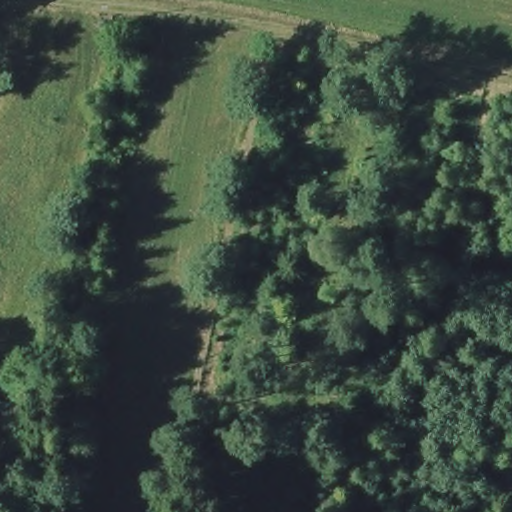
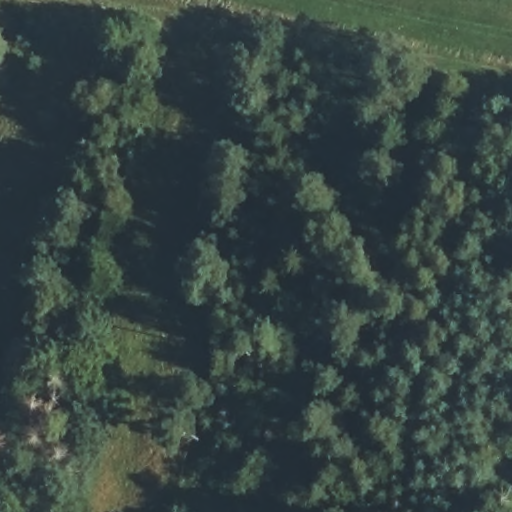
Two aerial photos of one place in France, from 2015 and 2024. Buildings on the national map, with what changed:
unchanged [(12,436),(0,433),(0,398),(20,401),(12,436)]

